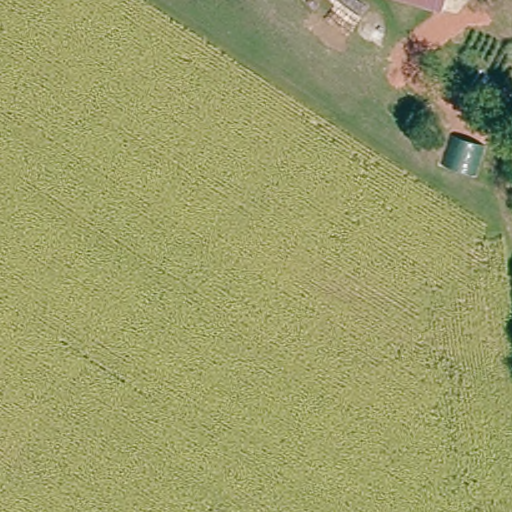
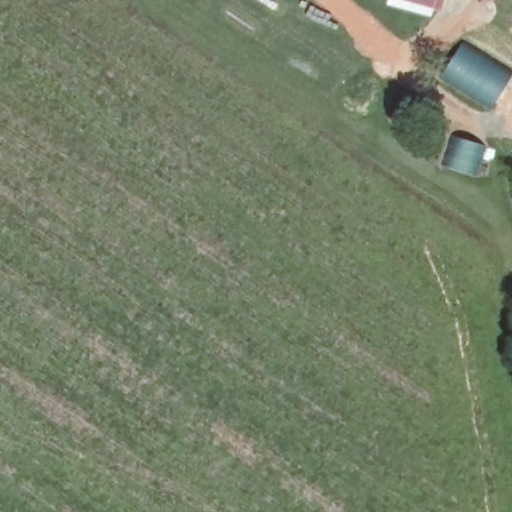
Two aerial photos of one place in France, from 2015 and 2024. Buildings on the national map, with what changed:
unchanged [(428,5),(402,0),(429,0),(428,5)]
new [(457,53),(462,46),(505,72),(501,79),(507,83),(493,106),(448,79),(462,56),(457,53)]

